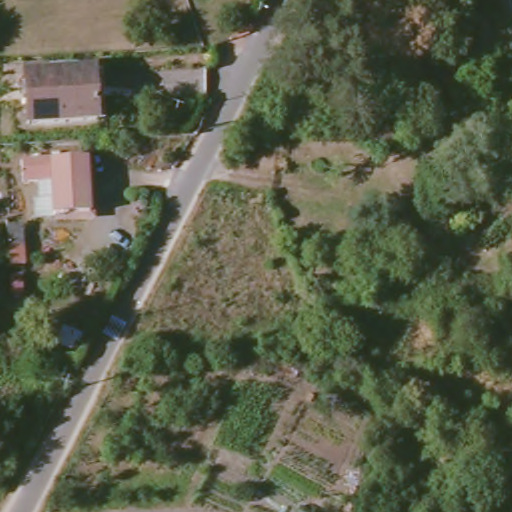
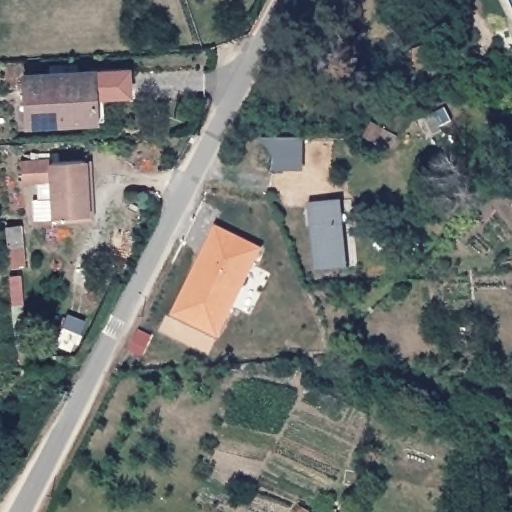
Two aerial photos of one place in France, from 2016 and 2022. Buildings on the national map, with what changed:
unchanged [(430,27),(437,13),(445,17),(437,32),(430,27)]
unchanged [(460,60),(424,59),(413,59),(413,48),(419,46),(424,45),(460,45),(460,60)]
unchanged [(28,125),(26,90),(19,90),(19,82),(25,82),(25,75),(95,71),(97,121),(28,125)]
unchanged [(390,149),(367,137),(374,124),(397,136),(390,149)]
unchanged [(56,200),(42,200),(40,182),(22,184),(21,162),(53,160),(53,162),(87,160),(89,215),(64,217),(57,217),(56,200)]
new [(348,268),(317,271),(311,203),(343,199),(348,268)]
unchanged [(22,226),(25,264),(10,265),(7,227),(22,226)]
new [(260,247),(215,335),(172,312),(217,226),(260,247)]

